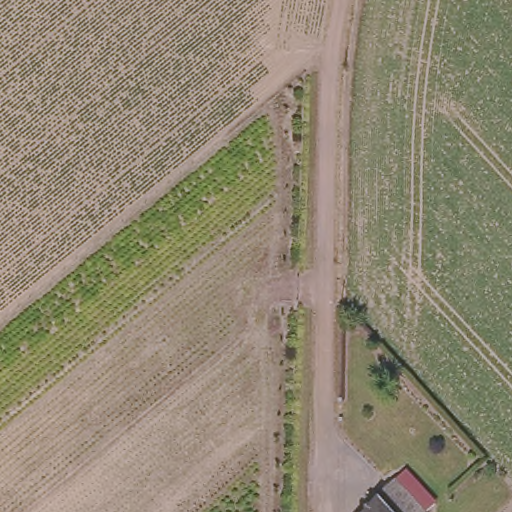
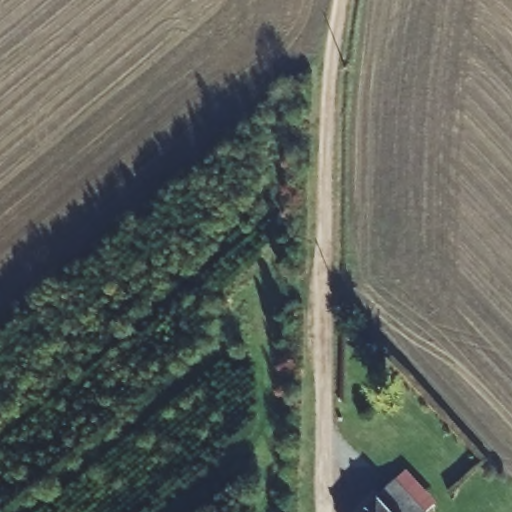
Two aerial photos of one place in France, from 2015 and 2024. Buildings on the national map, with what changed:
unchanged [(357,322),(378,344),(366,356),(345,334),(357,322)]
unchanged [(429,512),(375,512),(371,508),(369,506),(384,493),(399,478),(429,512)]
unchanged [(371,508),(375,512),(363,512),(369,506),(371,508)]

